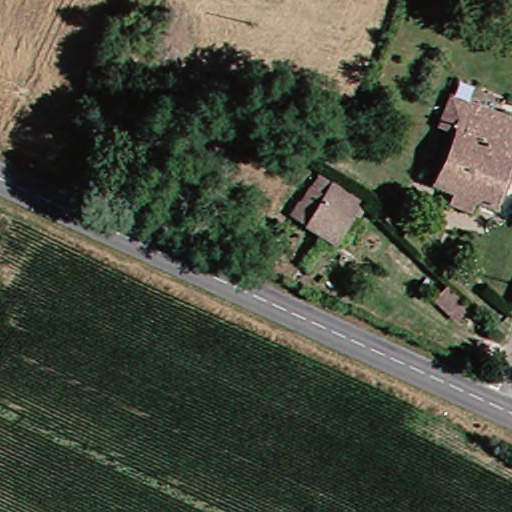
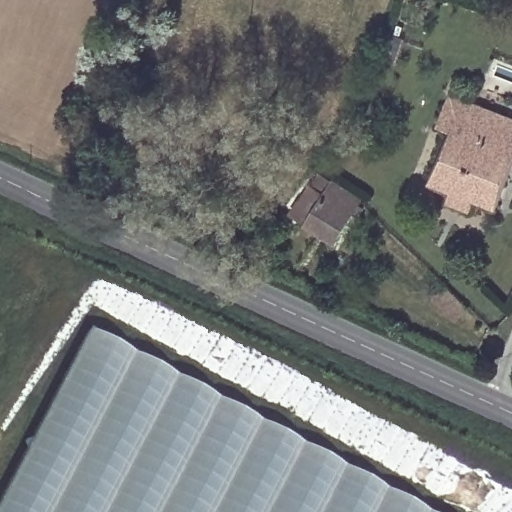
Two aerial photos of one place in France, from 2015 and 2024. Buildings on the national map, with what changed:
unchanged [(450,96),(512,121),(512,168),(495,211),(426,183),(430,175),(423,171),(450,96)]
unchanged [(281,216),(317,168),(357,209),(326,251),(281,216)]
unchanged [(459,322),(436,307),(445,294),(468,309),(459,322)]
new [(430,512),(0,512),(0,494),(88,326),(430,512)]

